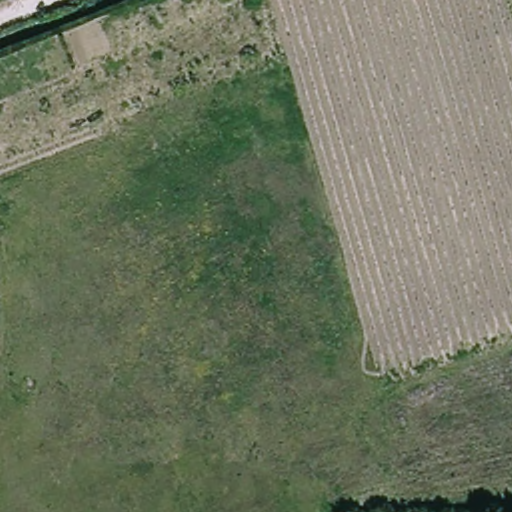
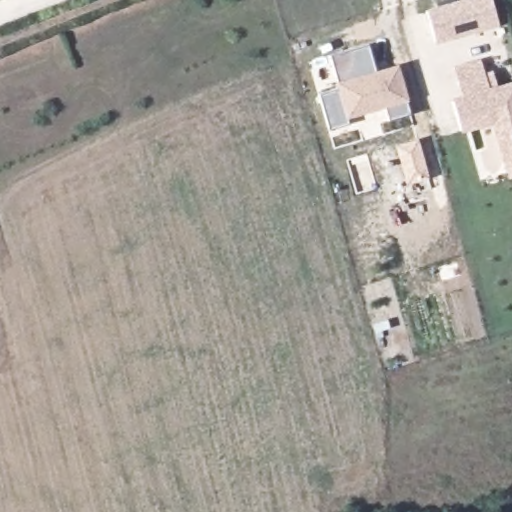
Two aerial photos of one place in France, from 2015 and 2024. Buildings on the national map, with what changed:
new [(490,0),(498,27),(436,44),(427,13),(471,0),(490,0)]
new [(338,90),(336,83),(339,83),(331,58),(368,46),(376,71),(399,65),(410,101),(406,102),(411,116),(389,122),(385,108),(348,119),(349,124),(330,131),(319,96),(338,90)]
new [(485,74),(492,71),(497,86),(512,82),(512,178),(508,179),(492,125),(461,134),(451,101),(462,96),(453,68),(481,59),(485,74)]

